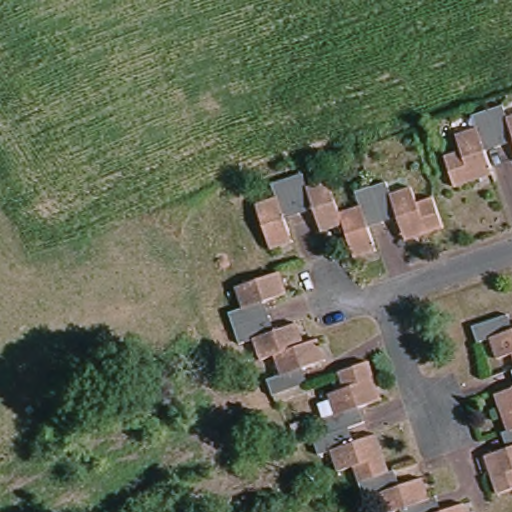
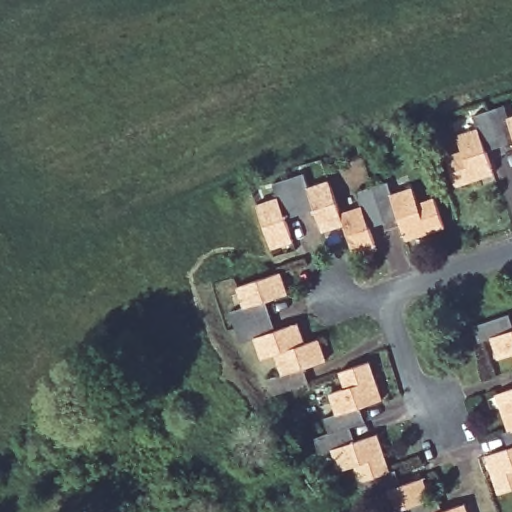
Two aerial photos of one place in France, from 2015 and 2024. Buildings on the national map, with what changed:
unchanged [(508,116),(512,115),(512,141),(488,150),(496,172),(457,186),(447,156),(464,150),(458,134),(477,127),(473,115),(505,104),(508,116)]
unchanged [(273,185),(303,175),(308,190),(331,181),(342,215),(363,208),(358,194),(388,183),(392,195),(414,187),(420,204),(436,199),(446,227),(407,241),(399,216),(371,226),(379,250),(357,257),(345,225),(323,233),(315,211),(287,221),(295,241),(273,249),(258,207),(279,200),(273,185)]
unchanged [(290,294),(266,302),(276,331),(298,323),(306,345),(321,340),(328,361),(306,370),(311,384),(277,396),(271,380),(285,375),(279,356),(265,361),(257,340),(241,345),(231,314),(246,308),(239,287),(282,272),(290,294)]
unchanged [(501,359),(493,338),(482,342),(477,325),(512,313),(512,315),(512,355),(501,359)]
unchanged [(407,506),(391,511),(384,492),(370,496),(360,464),(342,470),(336,451),(323,455),(318,440),(333,435),(328,418),(339,415),(333,394),(349,389),(343,372),(373,362),(386,400),(363,407),(368,423),(353,428),(358,442),(381,435),(393,472),(398,470),(403,483),(425,475),(432,496),(440,495),(444,510),(468,501),(472,512),(408,512),(407,506)]
unchanged [(500,392),(512,388),(512,429),(500,392)]
unchanged [(502,491),(489,454),(512,446),(507,431),(512,429),(512,488),(502,491)]
unchanged [(288,456),(281,443),(287,440),(295,452),(288,456)]

